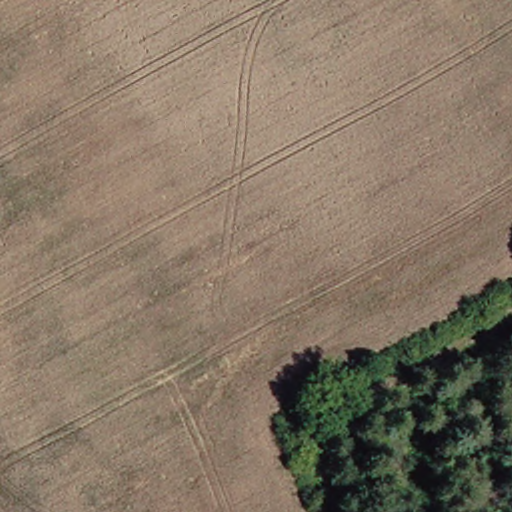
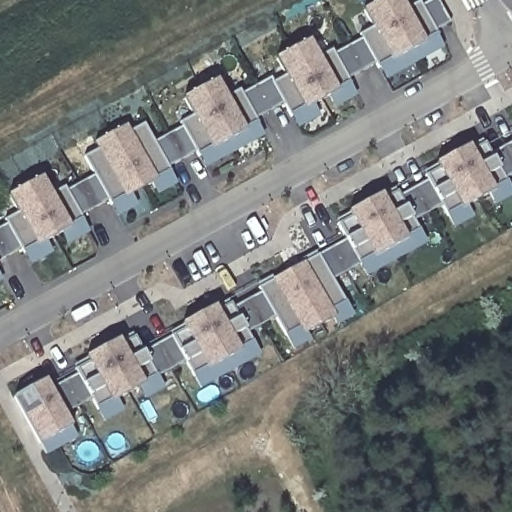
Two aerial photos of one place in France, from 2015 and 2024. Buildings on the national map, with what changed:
new [(375,29),(365,12),(386,0),(399,0),(406,13),(421,5),(438,36),(378,68),(361,37),(375,29)]
new [(287,78),(277,61),(309,44),(317,60),(332,52),(350,84),(290,116),(273,85),(287,78)]
new [(194,118),(183,99),(214,83),(223,100),(239,92),(256,123),(197,154),(180,125),(194,118)]
new [(98,151),(94,142),(126,125),(131,133),(144,126),(170,173),(111,203),(85,158),(98,151)]
new [(51,379),(55,385),(81,370),(81,369),(78,364),(91,356),(125,338),(126,341),(140,333),(142,337),(148,349),(190,326),(189,326),(221,308),(279,278),(281,282),(310,266),(308,262),(351,239),(345,226),(342,222),(357,214),(356,213),(390,195),(390,197),(445,167),(445,166),(477,147),(478,148),(491,142),(493,146),(493,145),(495,148),(512,141),(512,201),(502,206),(497,197),(473,210),(478,220),(460,229),(455,220),(448,208),(421,224),(427,234),(433,244),(372,277),(366,267),(339,282),(352,305),(358,317),(342,326),(340,320),(311,336),(315,341),(298,350),(291,338),(281,319),(254,334),(260,345),(265,354),(205,387),(200,377),(191,362),(102,410),(97,399),(70,414),(76,425),(81,436),(50,453),(45,443),(20,395),(51,379)]
new [(81,222),(69,229),(36,246),(23,252),(6,220),(18,214),(7,196),(42,178),(51,195),(64,189),(81,222)]
new [(127,409),(109,420),(102,410),(122,400),(127,409)]

